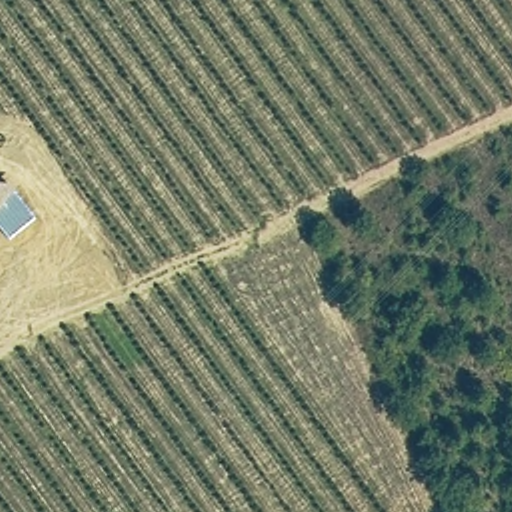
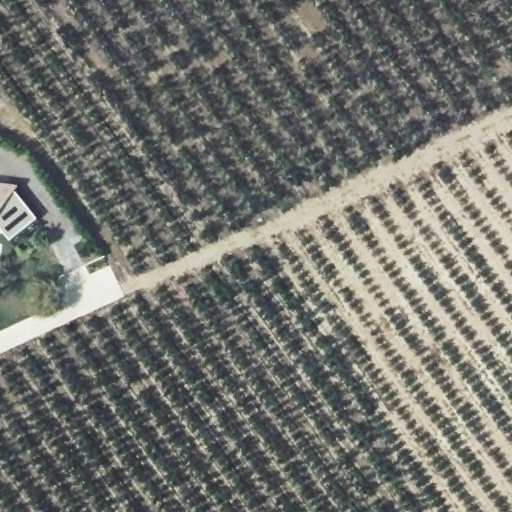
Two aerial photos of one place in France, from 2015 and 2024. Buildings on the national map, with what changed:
unchanged [(0,230),(0,184),(19,186),(14,193),(36,220),(9,242),(0,230)]

